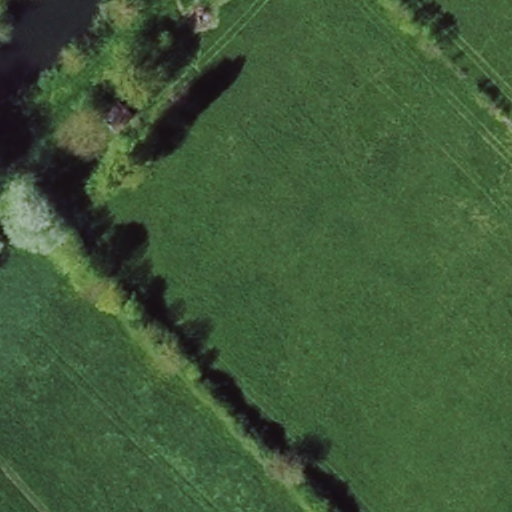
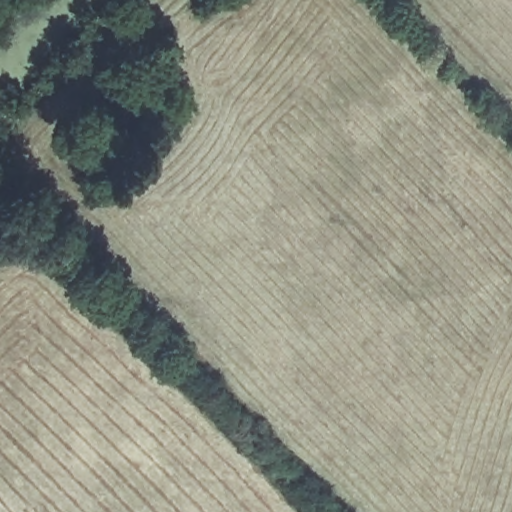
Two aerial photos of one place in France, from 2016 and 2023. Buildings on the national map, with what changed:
unchanged [(136,121),(120,134),(103,116),(117,103),(136,121)]

